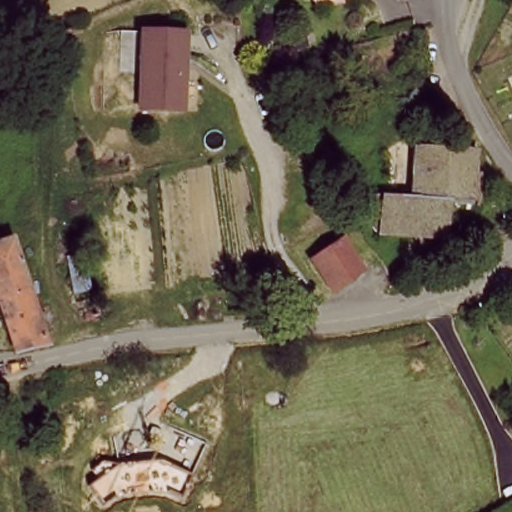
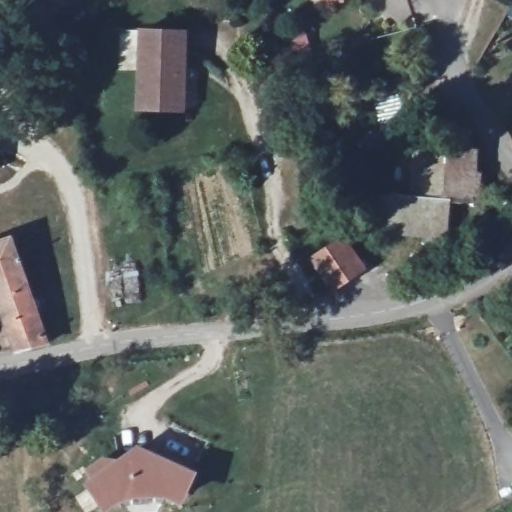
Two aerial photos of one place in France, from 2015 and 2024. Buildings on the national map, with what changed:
unchanged [(314,0),(326,0),(315,1),(314,0)]
unchanged [(195,101),(149,109),(136,35),(182,27),(195,101)]
unchanged [(418,144),(480,149),(484,202),(458,201),(455,239),(410,235),(414,194),(418,144)]
unchanged [(385,232),(388,192),(414,194),(410,235),(385,232)]
unchanged [(349,240),(368,269),(336,287),(319,258),(349,240)]
unchanged [(15,352),(0,305),(0,247),(16,241),(51,348),(15,352)]
new [(113,463),(137,446),(199,472),(184,504),(153,497),(137,497),(125,500),(109,511),(85,482),(91,478),(85,469),(104,456),(113,463)]

